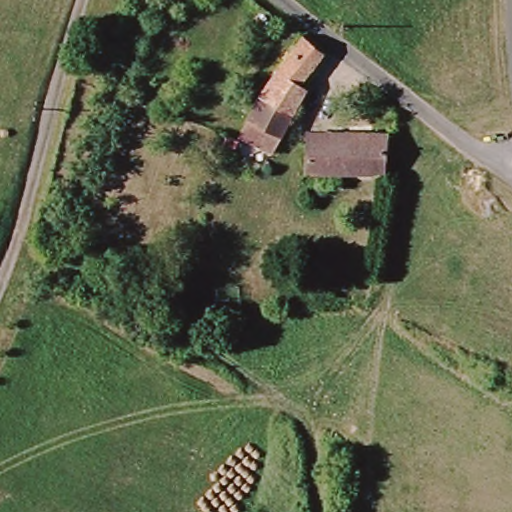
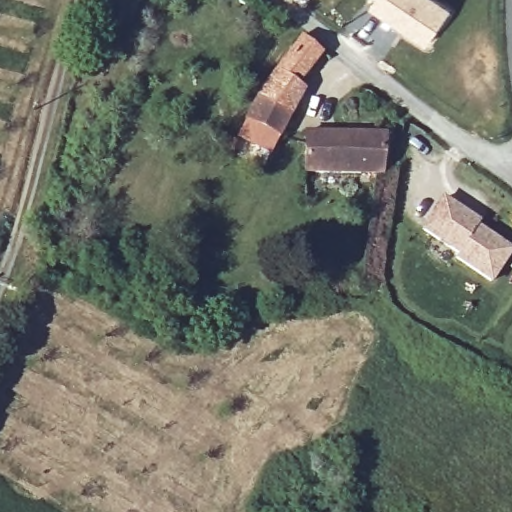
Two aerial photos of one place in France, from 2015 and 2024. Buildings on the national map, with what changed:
new [(441,0),(452,8),(427,45),(370,5),(374,0),(441,0)]
unchanged [(260,99),(299,42),(323,61),(298,93),(303,98),(262,163),(231,141),(260,99)]
unchanged [(385,143),(382,183),(304,179),(306,137),(385,143)]
new [(472,218),(478,222),(476,225),(511,248),(491,280),(455,258),(458,253),(422,230),(442,198),(472,218)]

